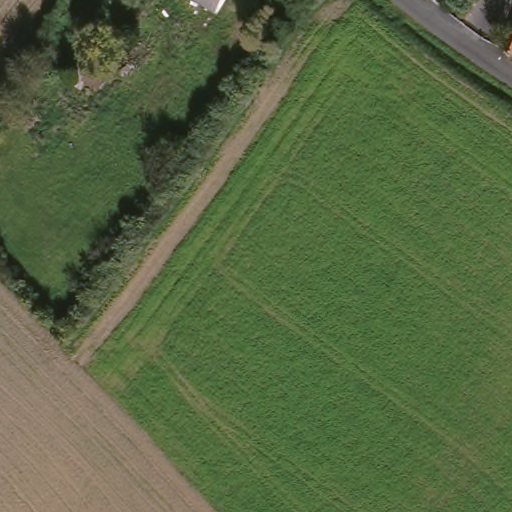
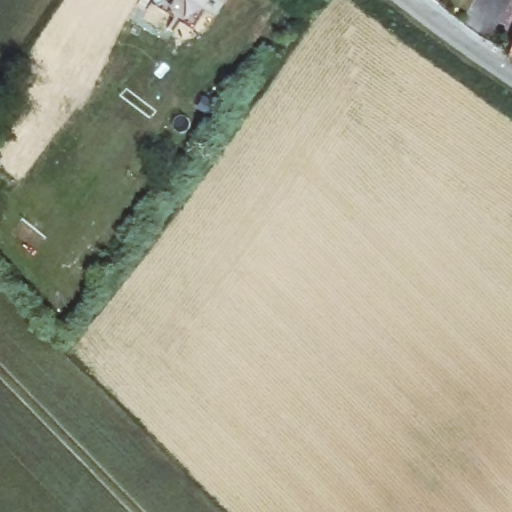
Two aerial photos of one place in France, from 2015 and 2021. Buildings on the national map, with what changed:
unchanged [(202,0),(225,0),(219,10),(202,0)]

